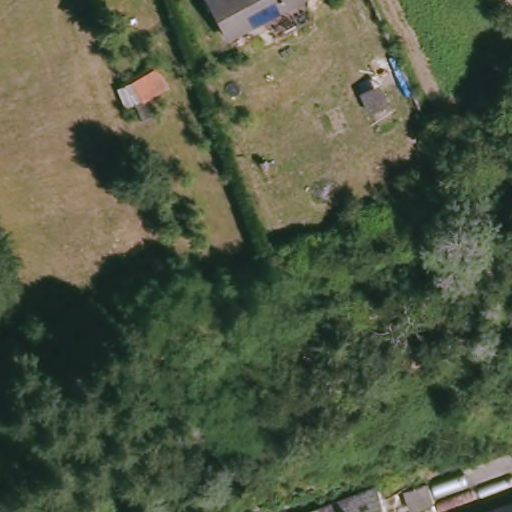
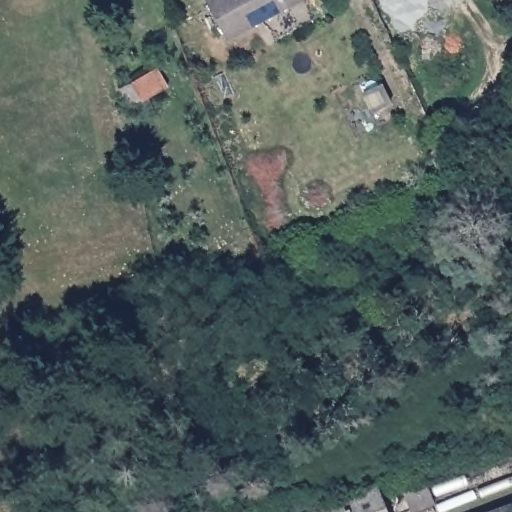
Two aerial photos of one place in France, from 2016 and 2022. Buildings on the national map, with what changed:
unchanged [(303,0),(224,42),(202,1),(205,0),(303,0)]
unchanged [(440,475),(447,492),(424,500),(417,483),(440,475)]
unchanged [(301,512),(392,480),(404,512),(301,512)]
unchanged [(503,512),(512,509),(512,512),(503,512)]

